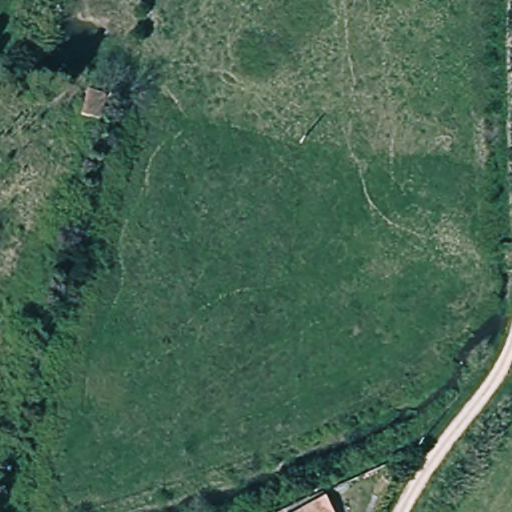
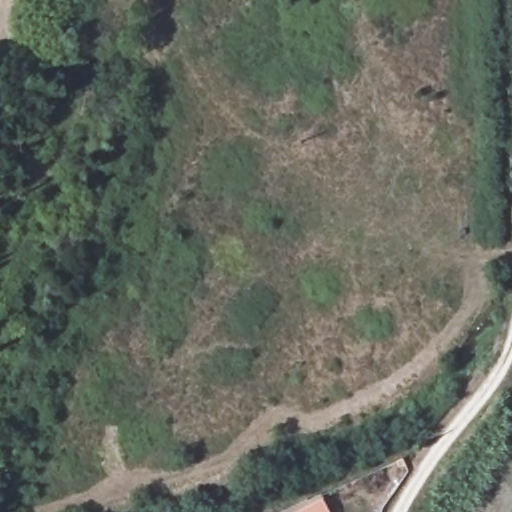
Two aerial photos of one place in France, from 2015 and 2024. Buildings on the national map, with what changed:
unchanged [(103,92),(96,122),(80,119),(86,90),(103,92)]
unchanged [(284,512),(321,494),(330,512),(284,512)]

